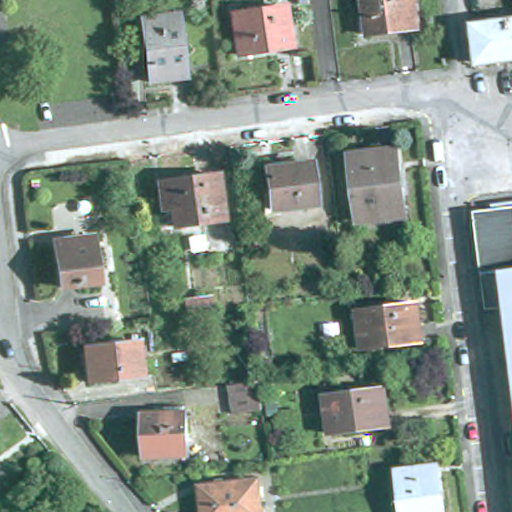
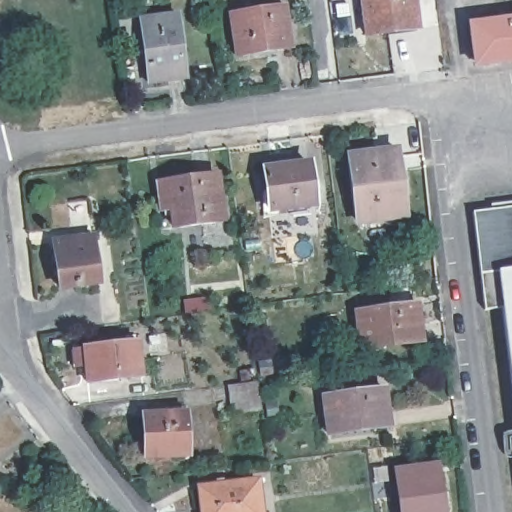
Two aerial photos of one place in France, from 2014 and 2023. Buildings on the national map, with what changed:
unchanged [(415,0),(419,31),(368,39),(362,0),(415,0)]
unchanged [(512,67),(479,72),(474,36),(472,36),(469,10),(471,9),(512,4),(512,67)]
unchanged [(233,14),(288,6),(293,48),(239,55),(233,14)]
unchanged [(176,15),(184,75),(149,79),(141,20),(176,15)]
unchanged [(399,217),(363,221),(351,157),(396,151),(402,191),(396,192),(399,217)]
unchanged [(266,166),(274,165),(275,168),(291,165),(291,171),(311,169),(317,208),(274,214),(266,166)]
unchanged [(171,214),(163,215),(159,188),(214,179),(221,225),(173,232),(171,214)]
unchanged [(487,314),(474,213),(512,207),(512,366),(504,312),(487,314)]
unchanged [(92,239),(98,284),(58,289),(53,244),(92,239)]
unchanged [(420,309),(427,346),(368,354),(363,317),(420,309)]
unchanged [(143,344),(147,378),(93,384),(88,351),(143,344)]
unchanged [(278,366),(279,381),(266,382),(264,368),(278,366)]
unchanged [(264,388),(269,424),(241,427),(236,389),(264,387),(264,388)]
unchanged [(389,394),(394,429),(335,438),(329,402),(389,394)]
unchanged [(187,410),(186,418),(189,418),(189,459),(148,459),(147,416),(168,417),(168,409),(187,410)]
unchanged [(437,469),(442,512),(400,512),(394,474),(437,469)]
unchanged [(264,480),(267,512),(207,512),(204,488),(264,480)]

